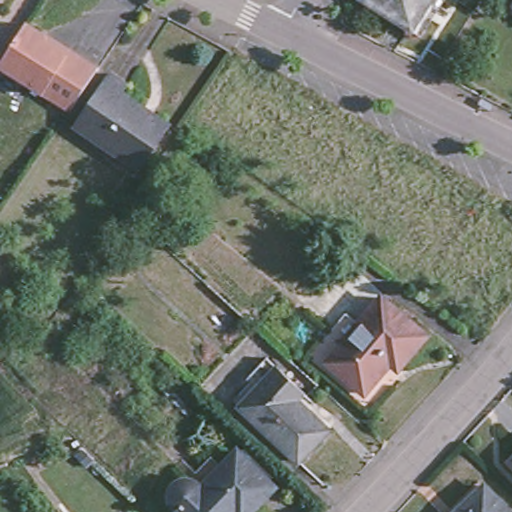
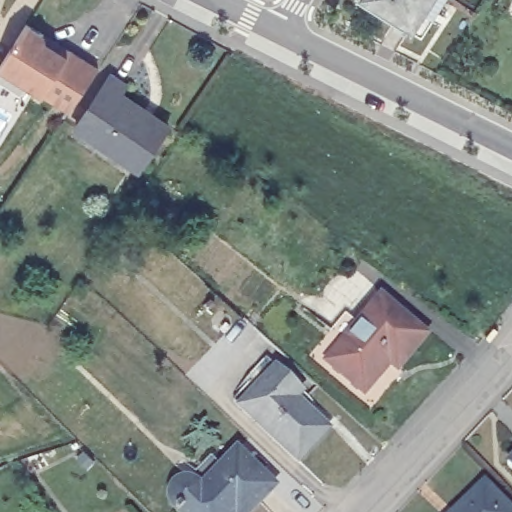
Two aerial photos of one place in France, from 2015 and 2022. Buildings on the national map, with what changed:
unchanged [(432,0),(412,30),(366,0),(432,0)]
unchanged [(44,34),(71,50),(100,67),(87,87),(71,109),(0,66),(27,24),(44,34)]
unchanged [(125,87),(119,96),(165,127),(140,165),(125,156),(120,163),(73,131),(110,77),(125,87)]
unchanged [(315,355),(339,328),(355,310),(367,322),(381,307),(390,297),(433,336),(427,342),(371,406),(315,355)]
unchanged [(278,368),(303,392),(298,398),(330,428),(300,460),(242,407),(278,368)]
unchanged [(276,491),(255,512),(179,512),(177,510),(176,507),(175,503),(176,500),(178,494),(181,491),(185,488),(190,487),(195,487),(202,492),(238,456),(276,491)]
unchanged [(508,466),(512,461),(512,469),(508,466)]
unchanged [(485,482),(512,510),(512,512),(454,512),(485,482)]

